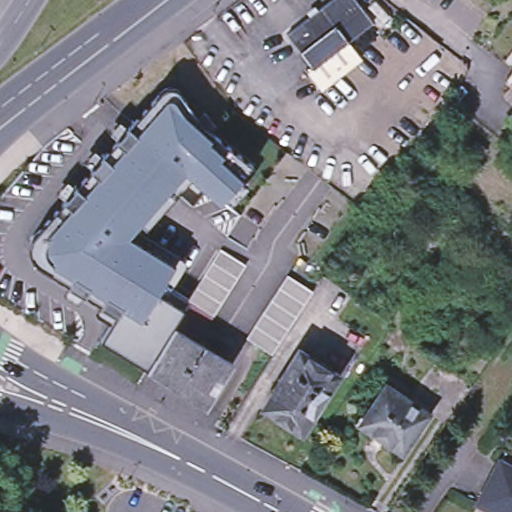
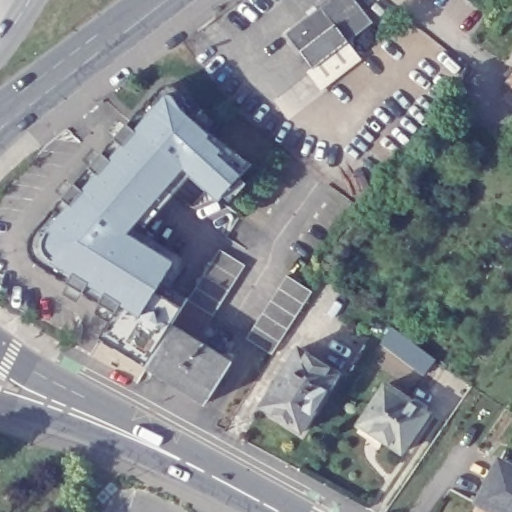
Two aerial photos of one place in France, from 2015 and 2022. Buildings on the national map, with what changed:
unchanged [(375,18),(317,65),(290,32),(329,0),(359,0),(375,18)]
unchanged [(427,0),(430,0),(428,1),(427,0)]
unchanged [(101,339),(112,315),(67,287),(42,271),(32,263),(25,251),(28,240),(64,198),(126,125),(164,88),(173,88),(178,93),(195,118),(202,112),(215,129),(211,132),(246,165),(236,175),(220,197),(213,202),(185,179),(141,235),(185,262),(170,286),(175,289),(167,298),(182,309),(183,306),(187,301),(188,298),(225,239),(252,256),(213,318),(198,342),(231,363),(205,403),(147,366),(101,339)]
unchanged [(260,318),(282,285),(287,278),(312,294),(307,302),(280,343),(257,329),(254,327),(260,318)]
new [(392,326),(436,358),(425,373),(382,342),(392,326)]
unchanged [(338,374),(322,398),(324,400),(315,415),(312,413),(300,431),(262,405),(271,390),(271,387),(277,377),(280,378),(299,348),(338,374)]
unchanged [(430,411),(402,453),(359,424),(387,382),(430,411)]
unchanged [(498,512),(478,501),(499,460),(512,467),(512,512),(498,512)]

